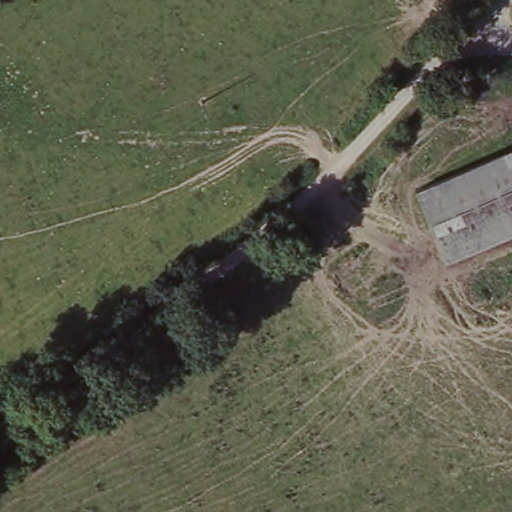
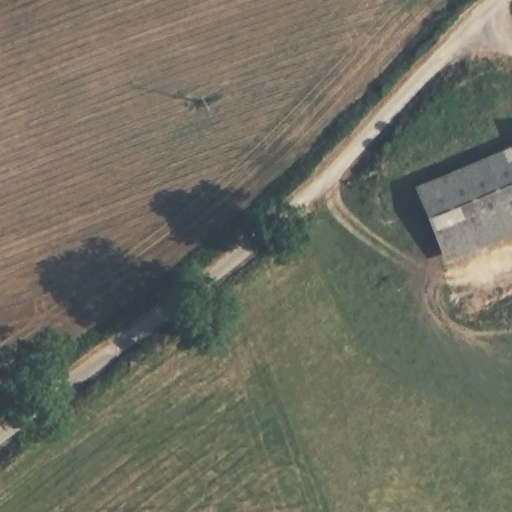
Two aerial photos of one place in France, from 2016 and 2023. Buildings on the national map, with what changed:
unchanged [(413,187),(512,146),(512,213),(438,244),(413,187)]

